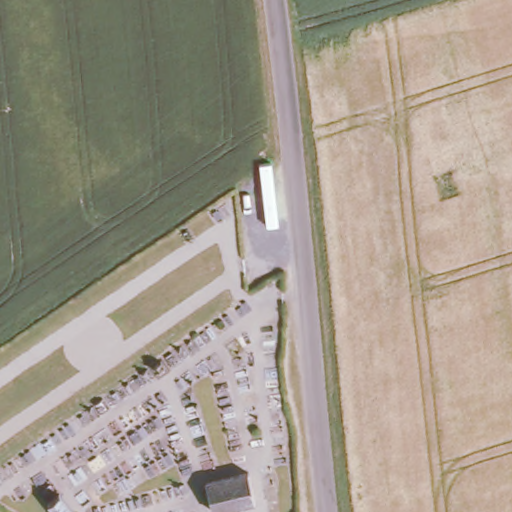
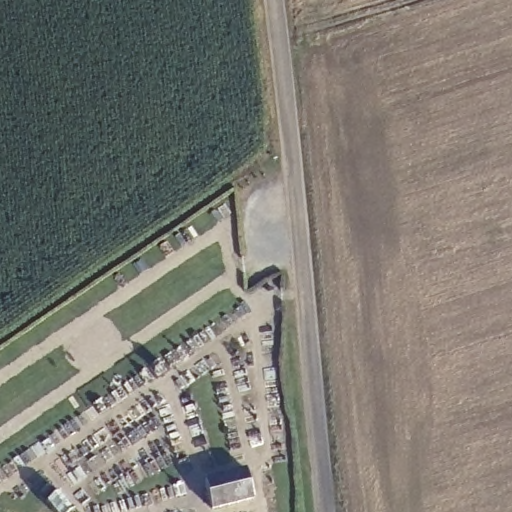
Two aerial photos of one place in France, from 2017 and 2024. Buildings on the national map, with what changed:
unchanged [(260,499),(217,512),(208,479),(252,469),(260,499)]

